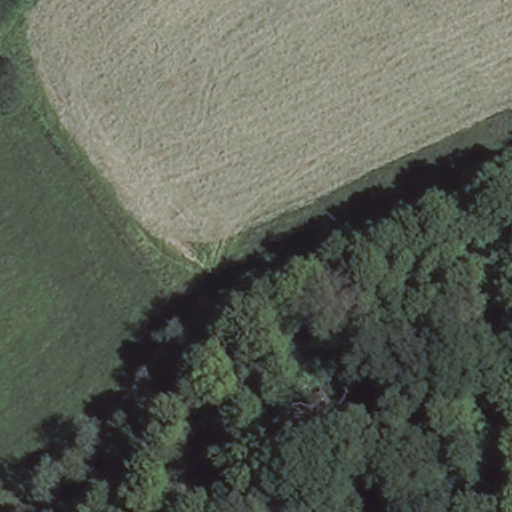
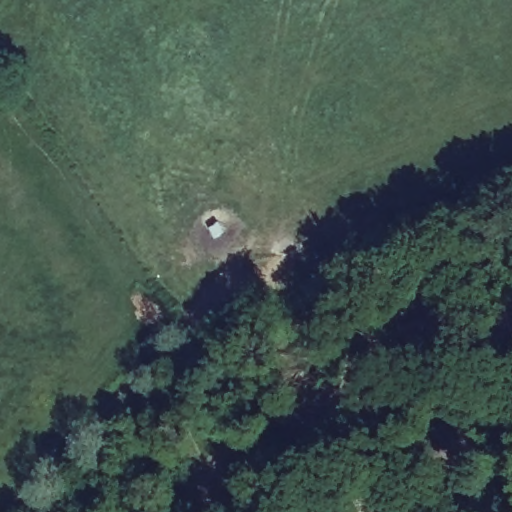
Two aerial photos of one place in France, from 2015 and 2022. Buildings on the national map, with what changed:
[]

